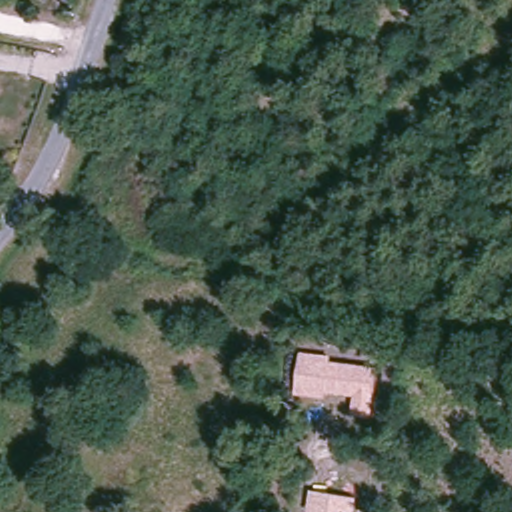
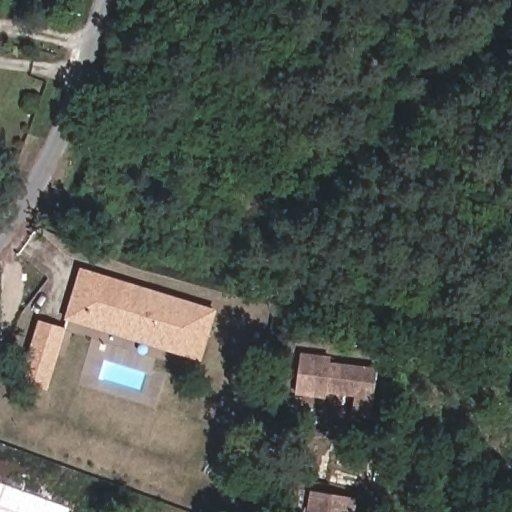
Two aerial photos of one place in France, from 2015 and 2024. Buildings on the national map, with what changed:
new [(85,270),(110,277),(98,315),(207,347),(203,357),(71,317),(85,270)]
new [(110,277),(219,310),(207,347),(98,315),(110,277)]
new [(30,368),(43,322),(68,330),(51,387),(27,380),(19,378),(23,365),(30,368)]
unchanged [(376,415),(352,412),(353,397),(329,393),(327,400),(295,393),(302,352),(333,355),(332,361),(382,368),(376,415)]
new [(69,512),(0,512),(0,483),(71,508),(69,512)]
unchanged [(308,512),(312,489),(359,496),(356,512),(308,512)]

